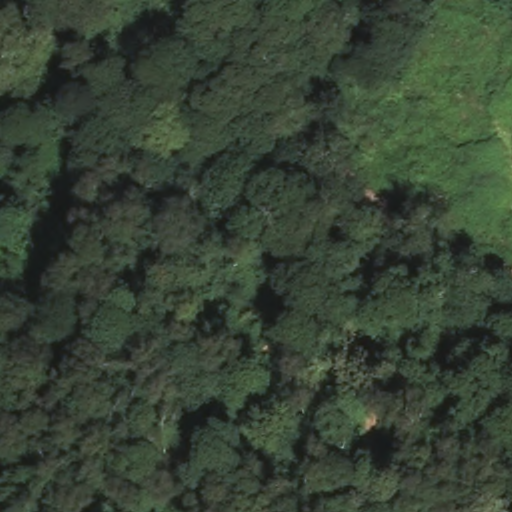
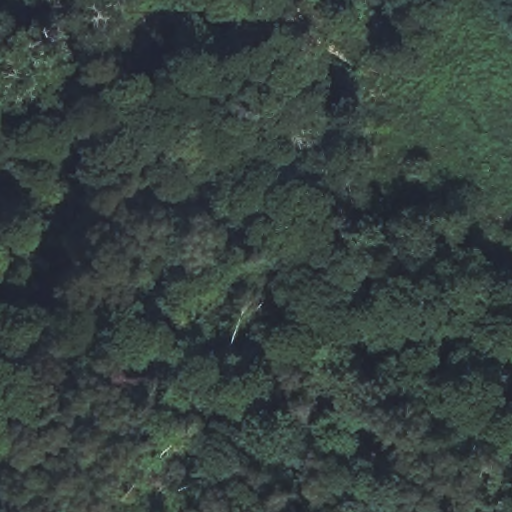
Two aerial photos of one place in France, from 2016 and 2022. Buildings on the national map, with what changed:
unchanged [(281,79),(302,44),(321,59),(300,94),(281,79)]

